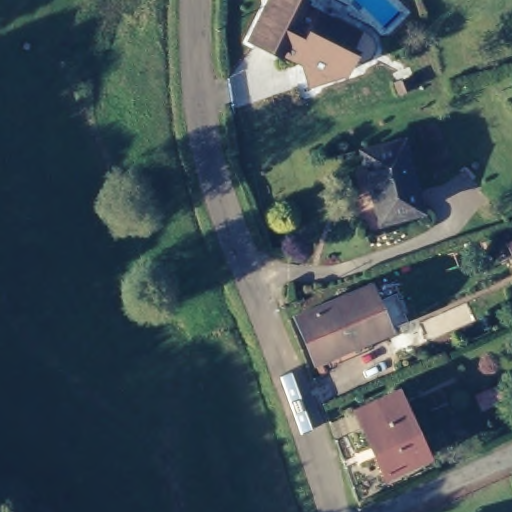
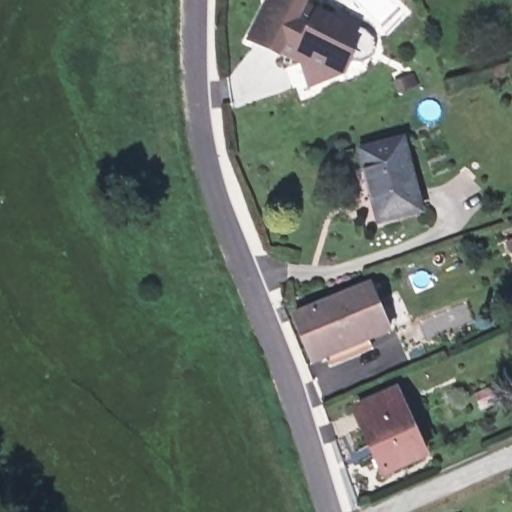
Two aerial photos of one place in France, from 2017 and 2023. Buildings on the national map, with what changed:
unchanged [(305,0),(305,1),(334,14),(336,11),(363,24),(374,34),(376,44),(373,52),(360,60),(351,57),(346,68),(310,80),(308,77),(314,62),(310,55),(302,57),(279,47),(277,49),(251,35),(268,0),(305,0)]
unchanged [(405,139),(423,210),(382,221),(363,150),(405,139)]
unchanged [(510,245),(512,244),(512,250),(510,245)]
unchanged [(383,278),(403,326),(310,363),(292,316),(383,278)]
unchanged [(389,393),(419,456),(379,474),(350,412),(389,393)]

